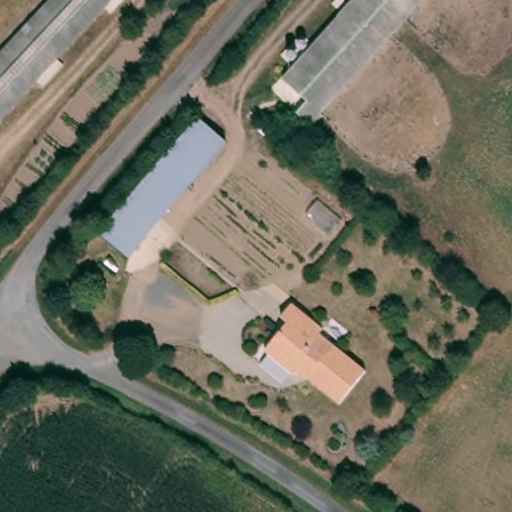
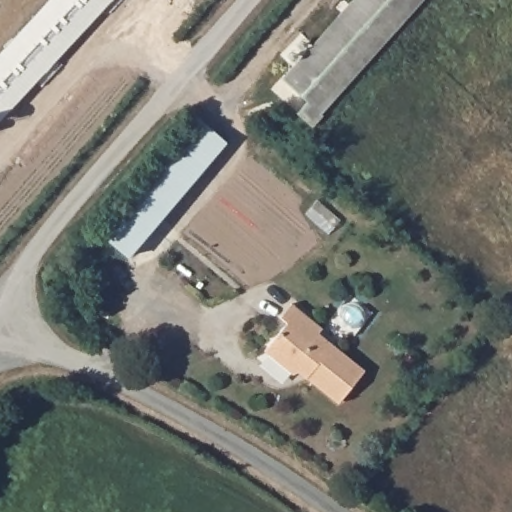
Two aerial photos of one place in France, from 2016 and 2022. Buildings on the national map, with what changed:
unchanged [(0,40),(37,0),(96,0),(0,104),(0,40)]
unchanged [(319,112),(323,115),(313,127),(297,114),(307,102),(284,81),(358,0),(419,0),(319,112)]
unchanged [(111,242),(97,230),(194,118),(209,129),(111,242)]
unchanged [(209,129),(228,145),(130,259),(111,242),(209,129)]
unchanged [(307,375),(303,376),(274,353),(297,326),(289,320),(300,307),(332,332),(328,337),(374,375),(347,407),(316,381),(315,382),(307,375)]

